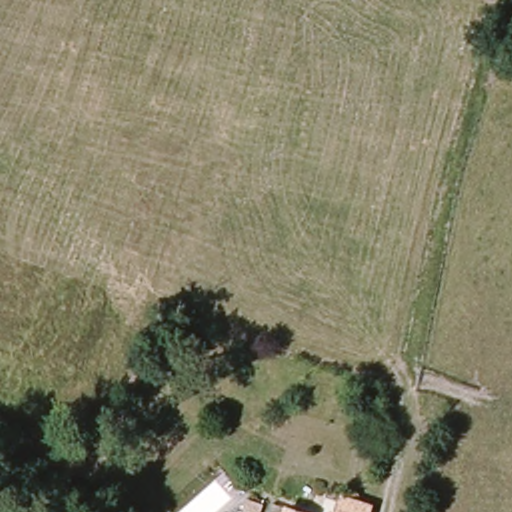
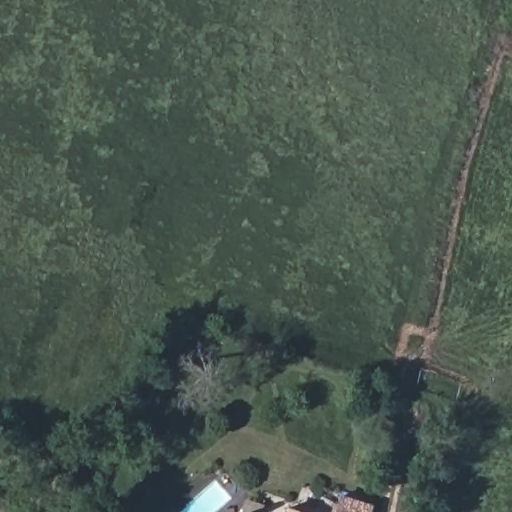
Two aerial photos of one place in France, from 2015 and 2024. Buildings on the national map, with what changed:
unchanged [(335,512),(337,503),(369,512),(335,512)]
unchanged [(246,512),(246,510),(255,512),(246,512)]

